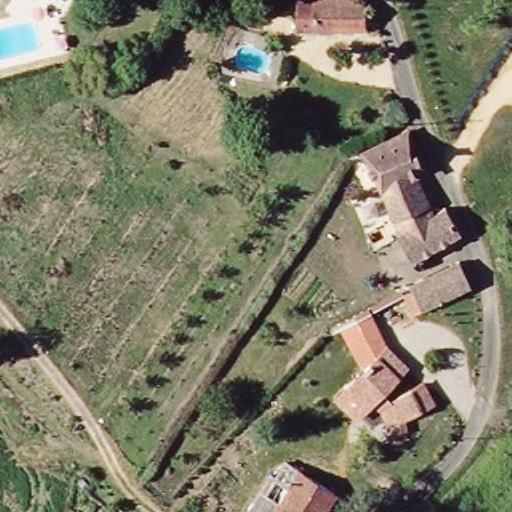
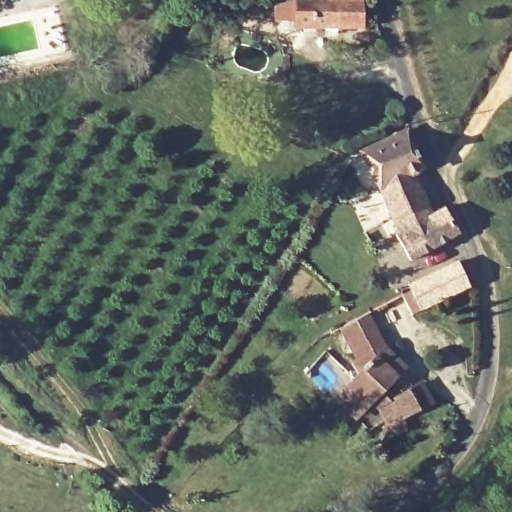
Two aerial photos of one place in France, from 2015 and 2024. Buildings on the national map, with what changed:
unchanged [(374,10),(374,22),(289,26),(288,0),(370,0),(374,10)]
unchanged [(413,260),(389,216),(395,210),(387,199),(383,197),(363,151),(407,130),(425,164),(413,171),(436,213),(448,207),(462,232),(448,240),(413,260)]
unchanged [(412,285),(460,261),(473,285),(424,310),(412,285)]
unchanged [(338,330),(369,313),(385,344),(391,350),(384,357),(378,352),(360,370),(338,330)]
unchanged [(332,397),(342,386),(378,352),(384,357),(393,348),(408,362),(400,372),(383,390),(390,399),(424,382),(435,405),(404,417),(409,428),(392,435),(387,425),(381,409),(373,401),(367,408),(356,420),(332,397)]
demolished [(270,480),(280,460),(332,490),(320,512),(272,512),(285,488),(270,480)]

